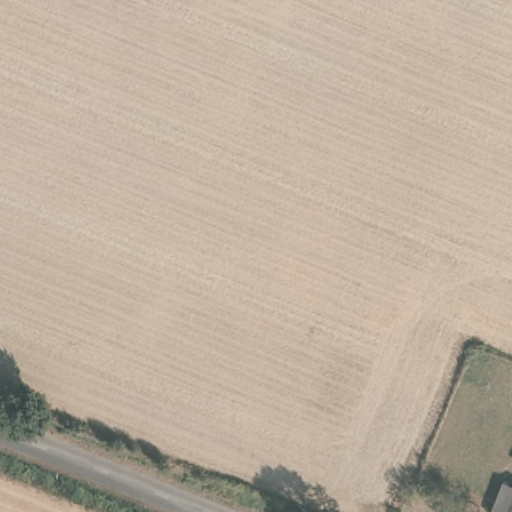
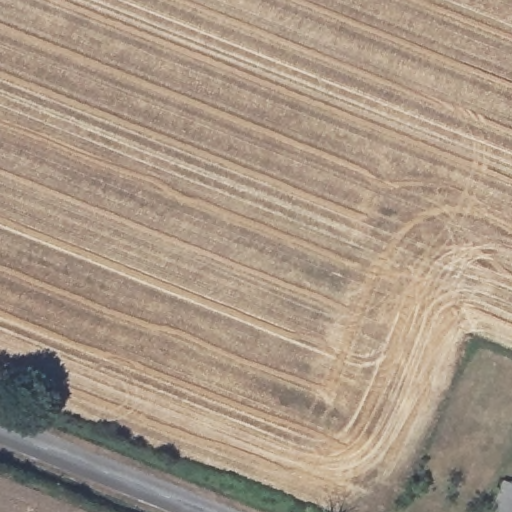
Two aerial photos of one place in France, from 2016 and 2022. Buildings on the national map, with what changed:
unchanged [(512,481),(512,512),(498,512),(495,511),(508,480),(512,481)]

